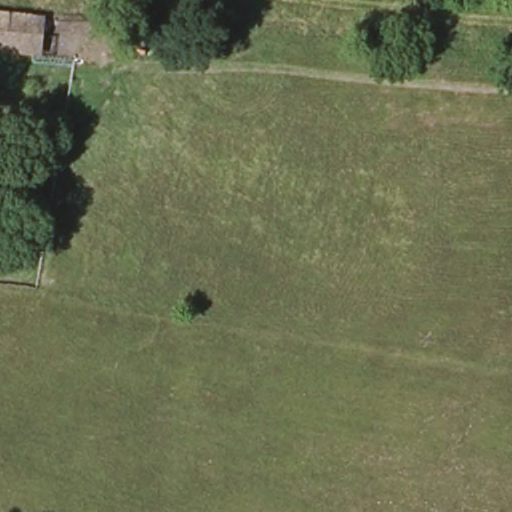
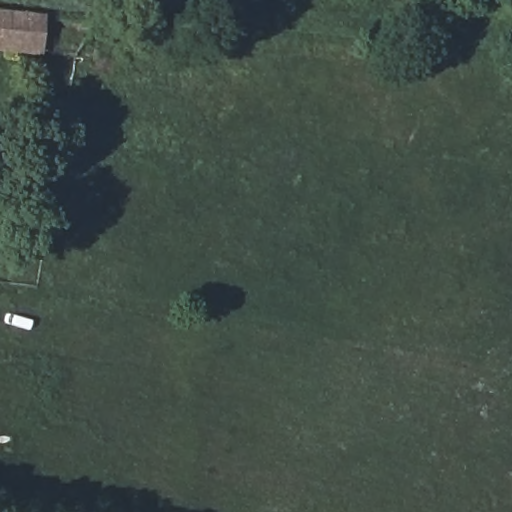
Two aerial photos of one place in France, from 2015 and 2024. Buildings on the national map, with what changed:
unchanged [(32,52),(0,48),(0,9),(36,14),(32,52)]

